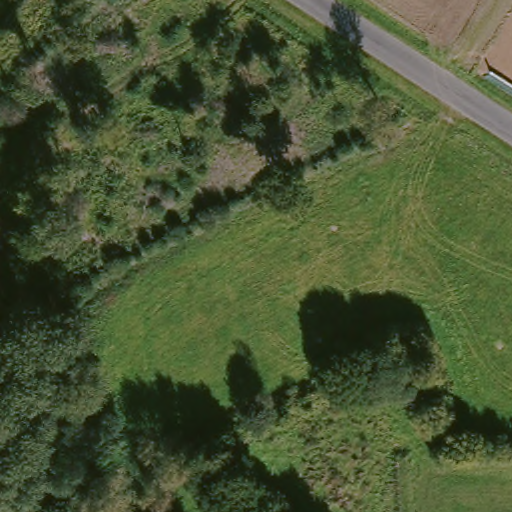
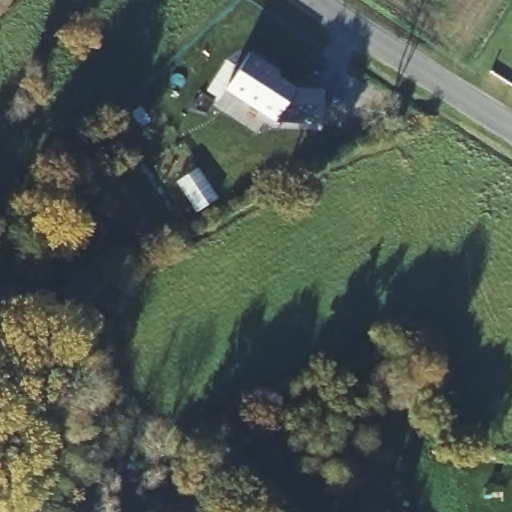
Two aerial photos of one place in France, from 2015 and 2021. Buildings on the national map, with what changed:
new [(274,122),(225,90),(252,51),(282,71),(278,75),(299,88),(324,89),(321,125),(274,122)]

